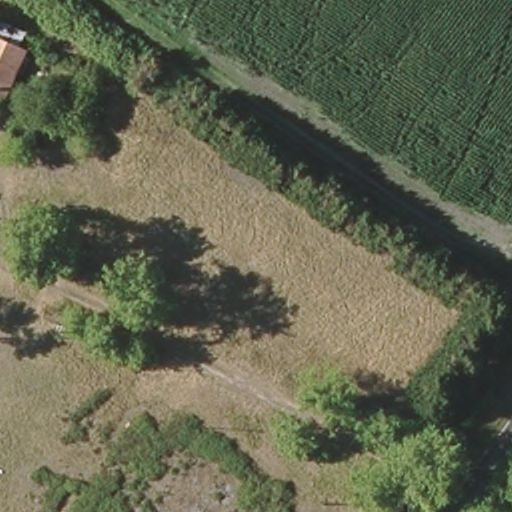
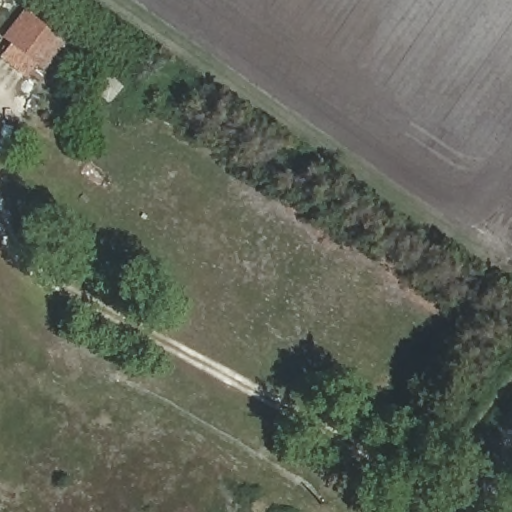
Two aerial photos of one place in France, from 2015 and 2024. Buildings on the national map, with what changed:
new [(26,80),(0,59),(0,56),(9,45),(1,39),(23,11),(64,43),(43,71),(36,66),(26,80)]
demolished [(28,43),(7,95),(0,92),(0,29),(28,43)]

